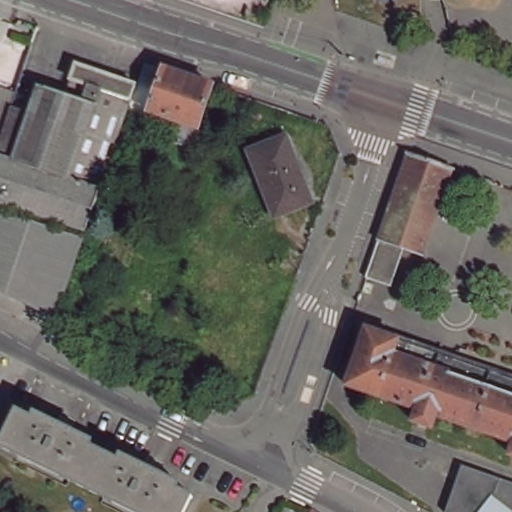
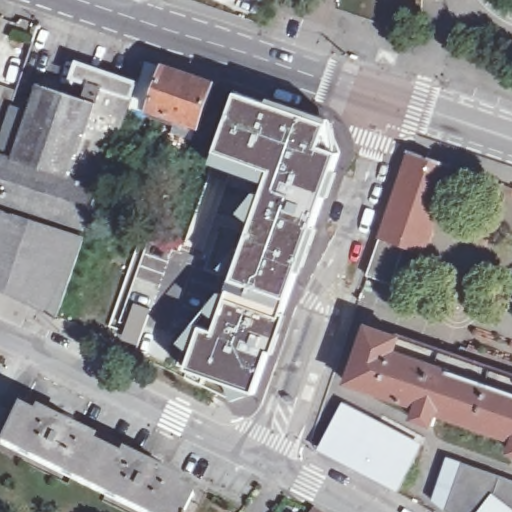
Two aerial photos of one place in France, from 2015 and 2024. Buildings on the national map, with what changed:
unchanged [(0,125),(0,96),(11,100),(11,101),(10,105),(26,110),(36,82),(96,105),(97,100),(85,95),(88,83),(84,82),(81,90),(69,86),(76,65),(136,85),(133,92),(129,103),(125,115),(124,118),(113,149),(108,163),(104,175),(85,229),(0,202),(0,131),(2,125),(0,125)]
unchanged [(147,113),(163,67),(211,84),(194,128),(192,128),(172,121),(147,113)]
new [(265,184),(211,165),(215,151),(236,90),(332,120),(332,146),(343,147),(326,200),(293,291),(279,340),(255,395),(244,392),(244,397),(233,400),(228,388),(227,386),(200,378),(185,371),(191,351),(178,342),(220,291),(225,293),(265,184)]
demolished [(286,137),(311,198),(277,213),(252,151),(286,137)]
unchanged [(424,253),(402,246),(389,285),(365,276),(408,149),(452,165),(424,253)]
unchanged [(53,313),(0,287),(0,212),(15,217),(79,238),(53,313)]
new [(133,302),(150,309),(137,344),(120,338),(133,302)]
unchanged [(466,428),(438,418),(434,429),(415,422),(419,411),(405,406),(348,386),(366,330),(437,355),(512,382),(512,444),(476,431),(466,428)]
new [(345,406),(424,448),(404,486),(325,445),(345,406)]
unchanged [(48,424),(50,421),(58,425),(60,421),(74,428),(72,431),(79,435),(78,438),(138,467),(140,463),(148,467),(150,463),(163,470),(161,473),(172,478),(170,482),(196,494),(187,512),(146,512),(5,446),(21,411),(48,424)]
unchanged [(512,447),(512,459),(509,457),(512,447)]
unchanged [(457,461),(512,480),(512,512),(444,512),(440,508),(457,461)]

